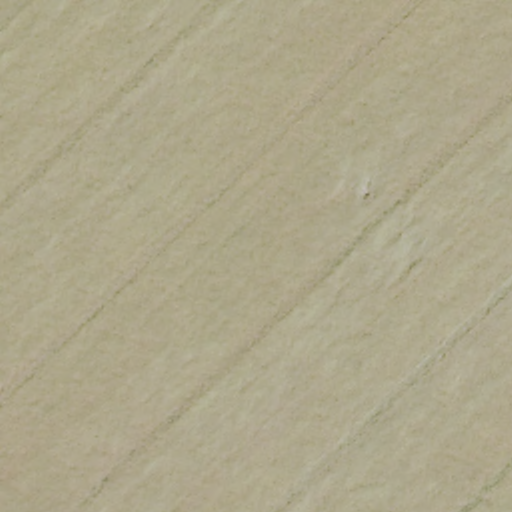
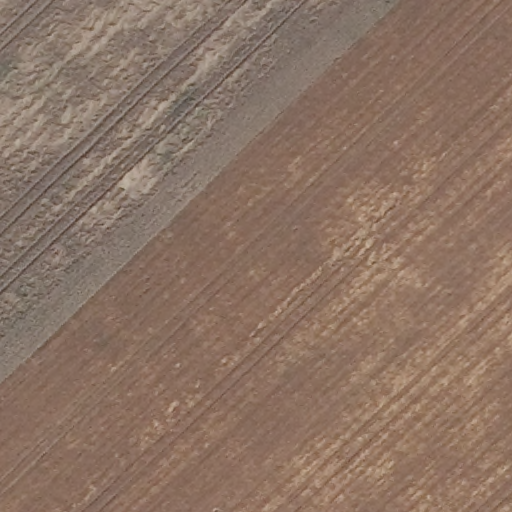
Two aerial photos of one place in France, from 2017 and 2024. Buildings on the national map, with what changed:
[]

